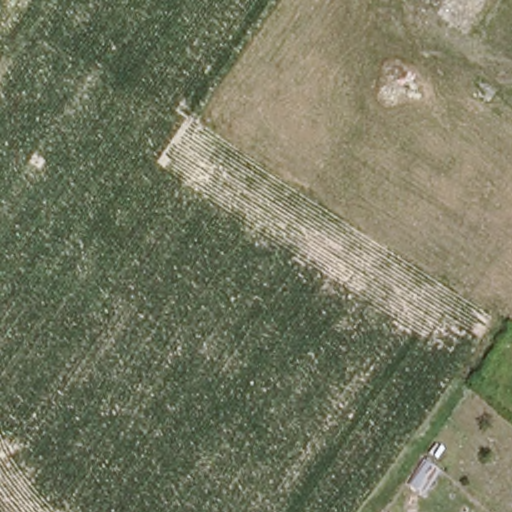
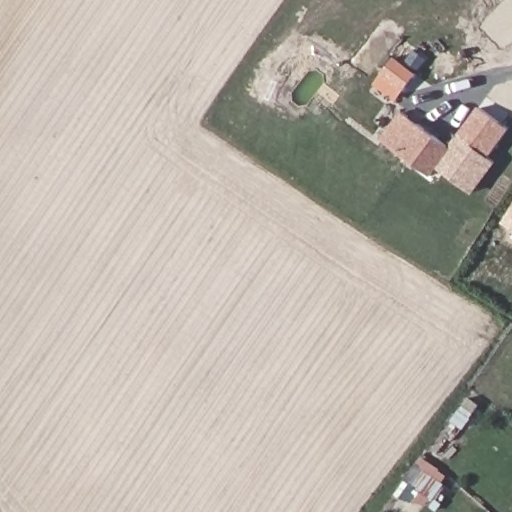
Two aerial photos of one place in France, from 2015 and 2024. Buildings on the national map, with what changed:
new [(417,75),(397,102),(373,85),(394,57),(417,75)]
new [(490,159),(459,135),(480,107),(510,130),(490,159)]
new [(432,176),(382,140),(402,111),(452,149),(432,176)]
new [(473,195),(438,168),(452,149),(450,147),(459,135),(490,159),(496,164),(473,195)]
new [(512,210),(512,228),(504,223),(512,210)]
new [(449,476),(441,483),(444,485),(431,503),(429,501),(423,510),(397,493),(422,457),(449,476)]

